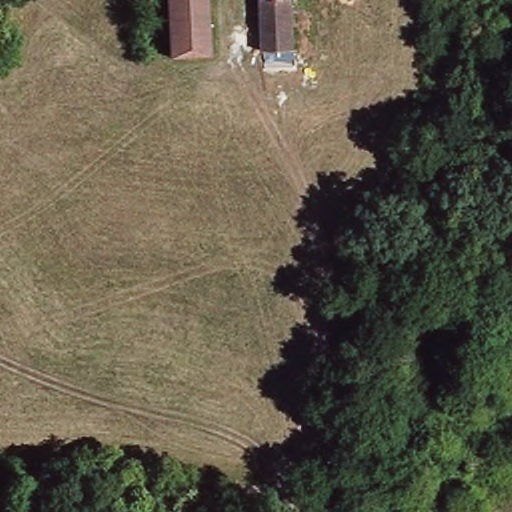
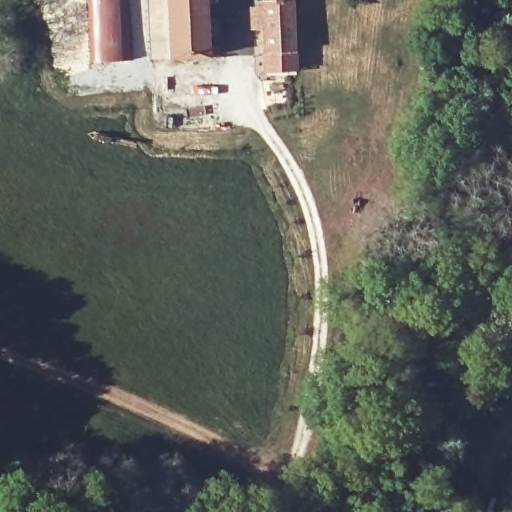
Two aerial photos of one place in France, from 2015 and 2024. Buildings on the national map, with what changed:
new [(97,0),(122,0),(125,61),(115,62),(100,62),(97,0)]
unchanged [(169,54),(166,0),(205,0),(208,52),(169,54)]
unchanged [(291,1),(293,50),(262,51),(261,2),(291,1)]

